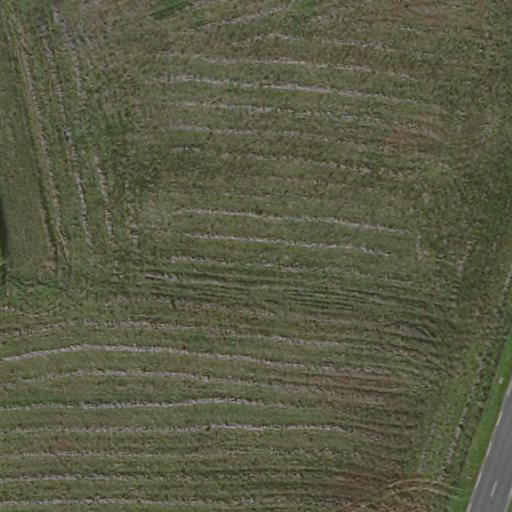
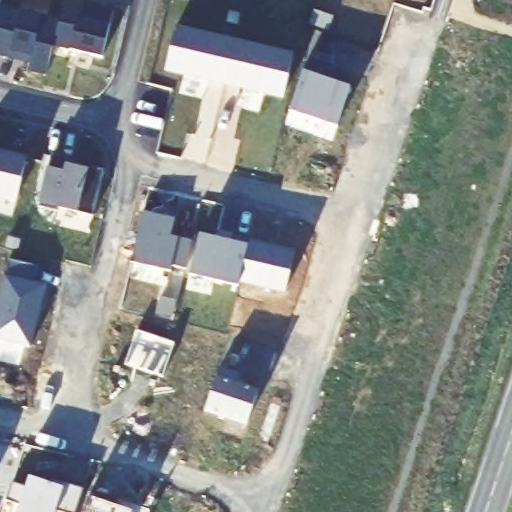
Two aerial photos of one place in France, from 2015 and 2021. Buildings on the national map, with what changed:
new [(63,11),(65,1),(82,5),(114,13),(103,59),(54,47),(60,22),(63,11)]
new [(0,30),(0,8),(5,9),(0,30)]
new [(60,22),(54,47),(47,76),(29,72),(33,56),(13,52),(11,57),(0,54),(0,30),(5,9),(60,22)]
new [(176,28),(235,42),(225,85),(166,70),(176,28)]
new [(235,42),(293,56),(284,99),(225,85),(235,42)]
new [(306,65),(322,70),(320,78),(350,88),(337,128),(290,112),(306,65)]
new [(18,201),(0,197),(0,152),(27,158),(18,201)]
new [(53,154),(70,158),(68,165),(80,168),(81,165),(105,170),(94,217),(60,209),(60,213),(40,208),(53,154)]
new [(143,213),(175,220),(171,237),(192,243),(186,271),(172,267),(171,273),(131,264),(143,213)]
new [(200,236),(231,244),(234,234),(250,239),(249,243),(238,288),(190,276),(200,236)]
new [(249,243),(295,254),(285,293),(240,282),(249,243)]
new [(37,267),(34,284),(45,286),(30,349),(0,342),(0,298),(8,261),(37,267)]
new [(219,369),(239,376),(236,385),(258,392),(247,426),(205,412),(219,369)]
new [(26,488),(29,479),(51,486),(53,481),(83,491),(76,512),(18,512),(19,507),(5,502),(12,484),(26,488)]

